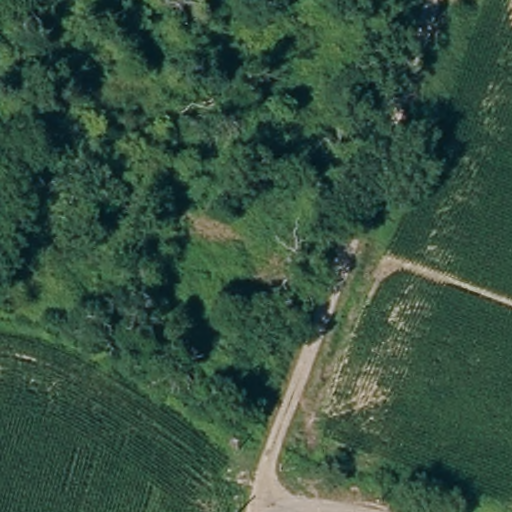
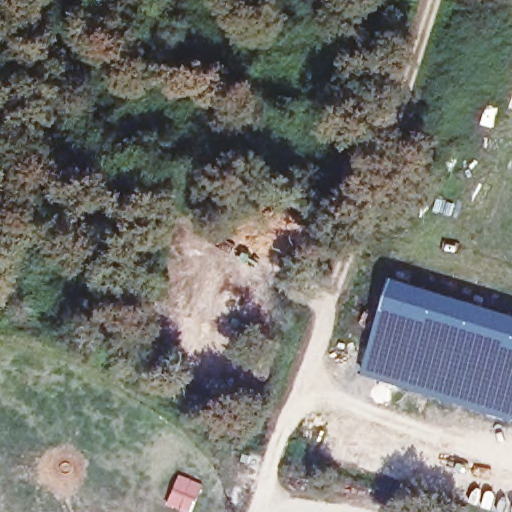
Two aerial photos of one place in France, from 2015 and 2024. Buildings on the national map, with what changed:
new [(393,275),(512,312),(512,420),(429,395),(359,372),(393,275)]

